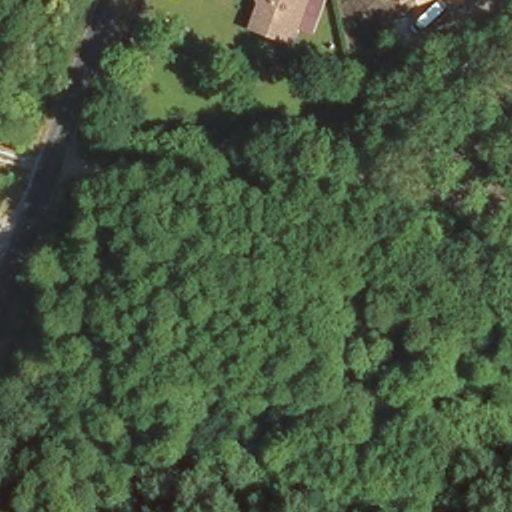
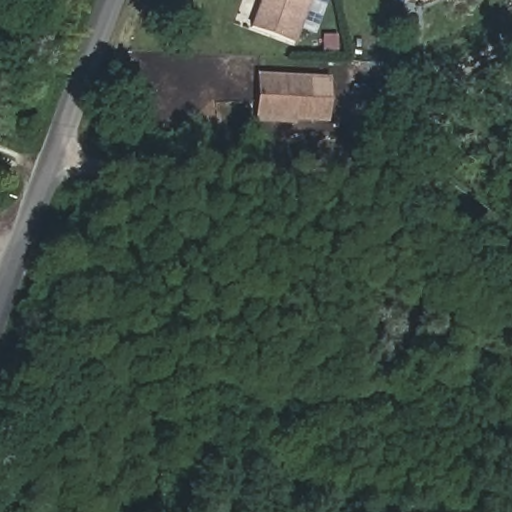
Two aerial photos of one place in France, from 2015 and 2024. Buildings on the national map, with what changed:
unchanged [(290,43),(248,29),(257,3),(255,0),(305,0),(290,43)]
unchanged [(403,4),(402,0),(412,0),(403,4)]
unchanged [(420,4),(417,0),(429,0),(420,4)]
new [(254,121),(256,73),(330,76),(328,124),(254,121)]

